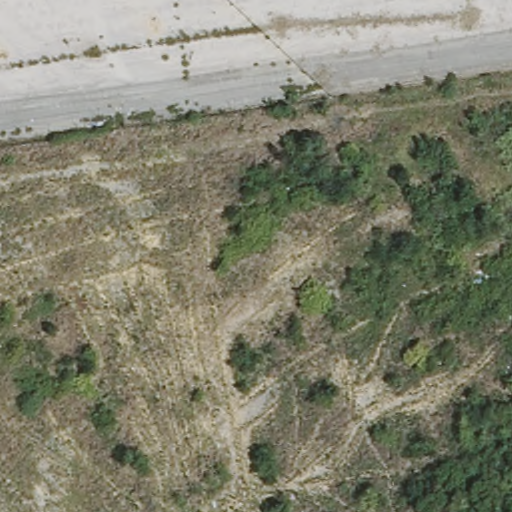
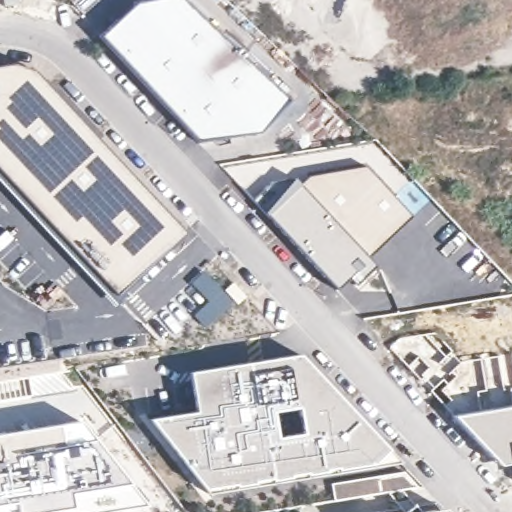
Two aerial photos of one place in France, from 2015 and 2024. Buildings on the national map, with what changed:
new [(136,5),(157,0),(183,0),(290,100),(258,133),(197,141),(101,36),(136,5)]
new [(17,62),(25,65),(38,75),(113,156),(186,230),(113,303),(16,201),(0,183),(0,64),(10,62),(17,62)]
new [(295,177),(301,184),(309,176),(366,166),(410,215),(366,255),(376,265),(356,283),(349,276),(336,290),(266,213),(253,202),(272,182),(295,177)]
new [(398,338),(434,332),(454,353),(453,355),(459,362),(512,354),(512,404),(476,410),(452,415),(429,391),(389,347),(398,338)]
new [(196,413),(190,372),(300,355),(387,448),(399,463),(417,486),(334,500),(327,470),(203,488),(150,419),(196,413)]
new [(476,410),(512,404),(512,473),(510,464),(499,466),(452,415),(476,410)]
new [(129,482),(146,505),(101,512),(0,512),(0,434),(81,420),(129,482)]

